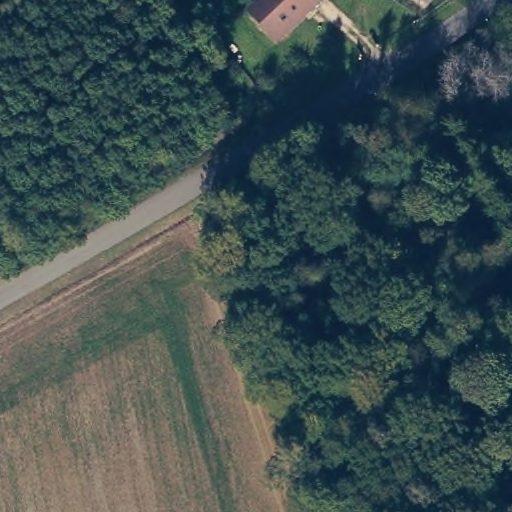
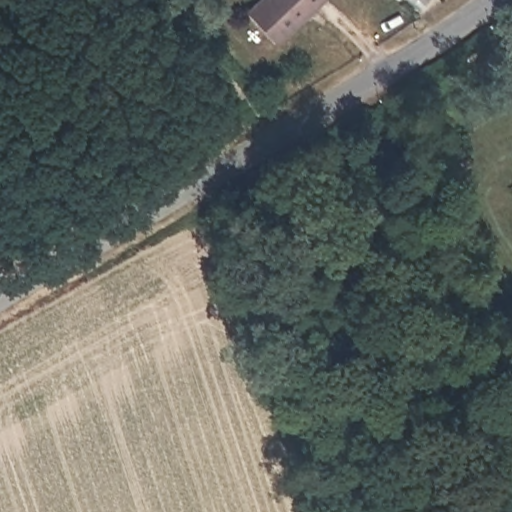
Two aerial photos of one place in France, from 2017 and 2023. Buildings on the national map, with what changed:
unchanged [(252,16),(260,9),(269,0),(324,0),(326,2),(286,38),(279,45),(252,16)]

